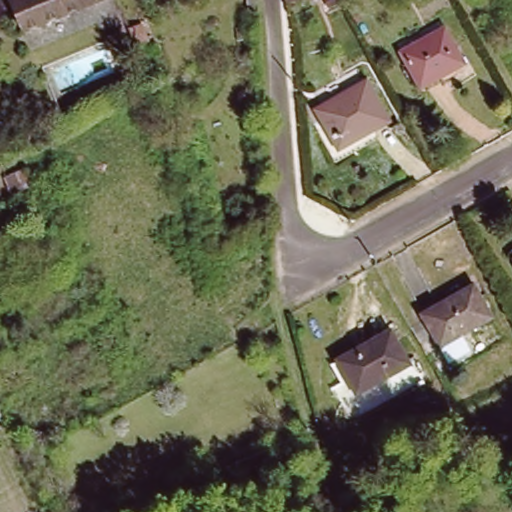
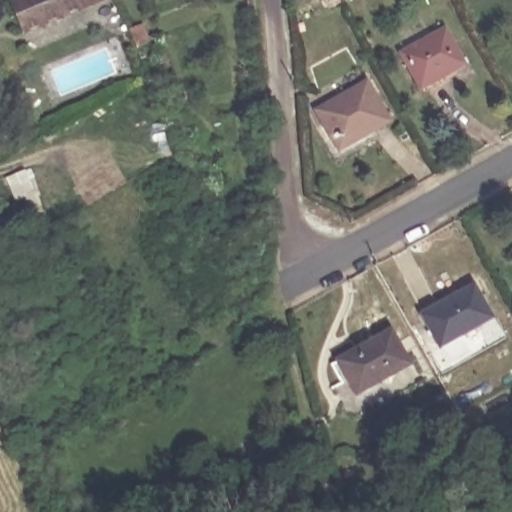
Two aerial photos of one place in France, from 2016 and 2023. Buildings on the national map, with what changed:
unchanged [(30,33),(15,0),(16,0),(103,0),(30,33)]
unchanged [(328,0),(339,0),(330,5),(328,0)]
unchanged [(406,53),(450,27),(471,63),(427,89),(406,53)]
unchanged [(371,81),(394,121),(346,149),(332,123),(339,119),(330,105),(371,81)]
unchanged [(12,208),(2,184),(20,175),(32,199),(12,208)]
unchanged [(428,313),(480,284),(499,317),(446,346),(428,313)]
unchanged [(343,360),(396,331),(414,364),(360,393),(343,360)]

